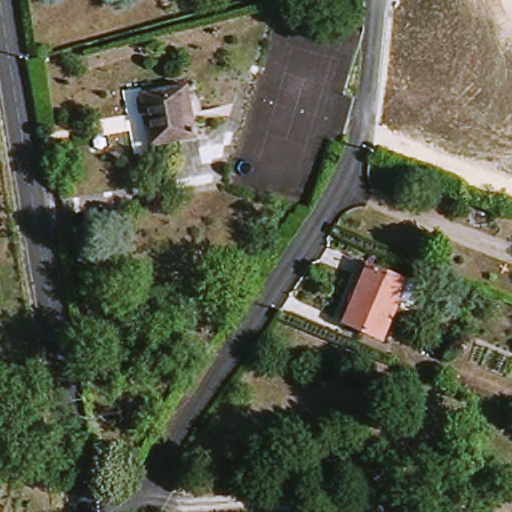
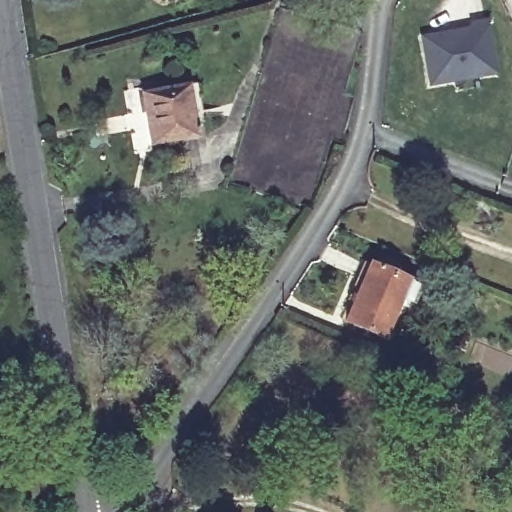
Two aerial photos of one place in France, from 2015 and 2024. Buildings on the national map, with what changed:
unchanged [(339,1),(339,0),(345,0),(339,1)]
new [(428,88),(420,38),(465,29),(465,25),(487,19),(496,76),(428,88)]
unchanged [(184,91),(193,143),(154,150),(149,122),(140,123),(135,99),(184,91)]
unchanged [(420,287),(408,315),(395,309),(383,338),(345,321),(369,265),(407,281),(420,287)]

